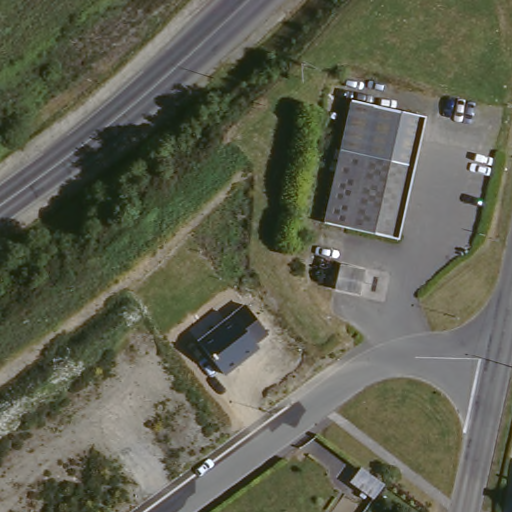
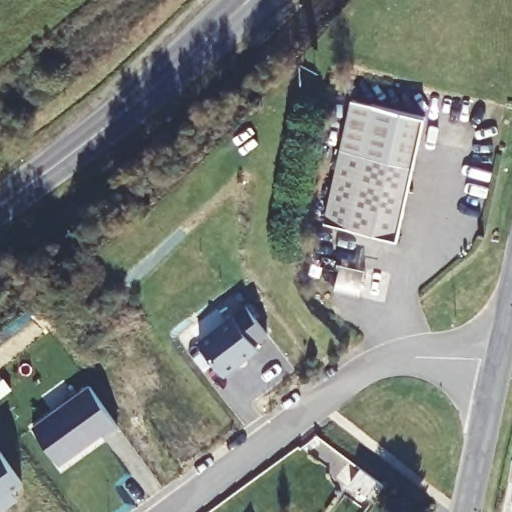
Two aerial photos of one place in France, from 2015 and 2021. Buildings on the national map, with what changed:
unchanged [(322,220),(355,99),(427,119),(395,240),(322,220)]
unchanged [(354,299),(330,292),(336,267),(361,274),(354,299)]
unchanged [(271,333),(258,345),(260,348),(225,376),(198,340),(246,303),(271,333)]
new [(92,384),(120,422),(106,433),(104,430),(61,462),(35,426),(92,384)]
new [(12,490),(18,499),(0,512),(0,451),(21,482),(12,490)]
new [(364,459),(388,475),(378,490),(354,474),(364,459)]
unchanged [(509,512),(512,502),(512,512),(509,512)]

